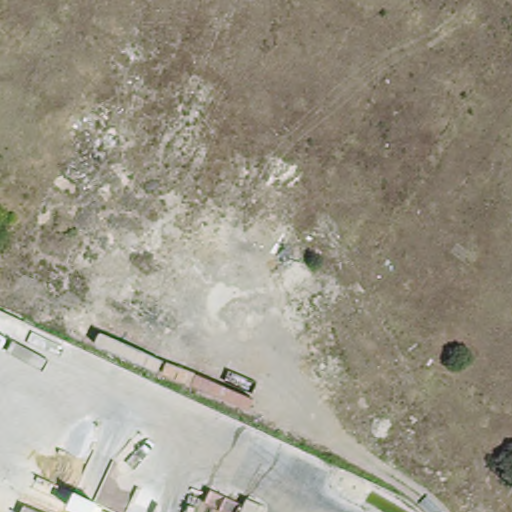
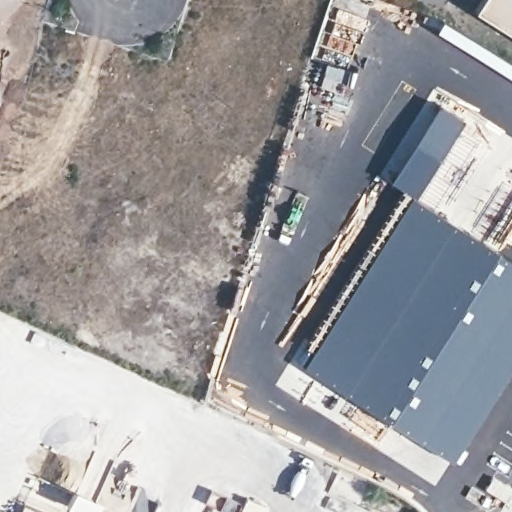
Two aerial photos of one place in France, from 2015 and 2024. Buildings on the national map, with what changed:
new [(475,9),(481,0),(512,0),(512,32),(475,9)]
new [(462,117),(414,196),(409,194),(389,179),(437,103),(462,117)]
new [(317,337),(374,246),(409,194),(415,197),(512,259),(512,366),(504,379),(452,462),(388,422),(353,400),(299,370),(317,337)]
unchanged [(75,489),(101,501),(96,512),(89,512),(70,503),(75,489)]

